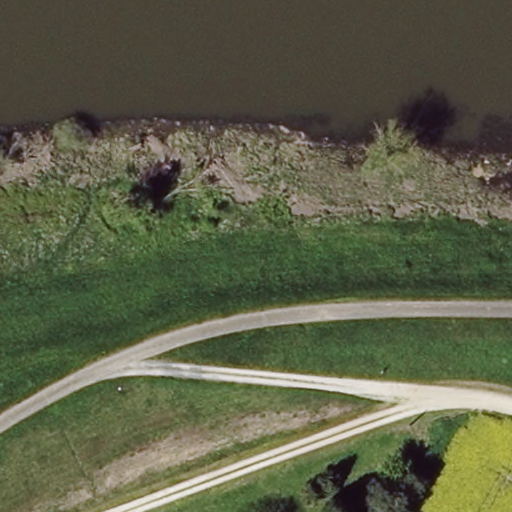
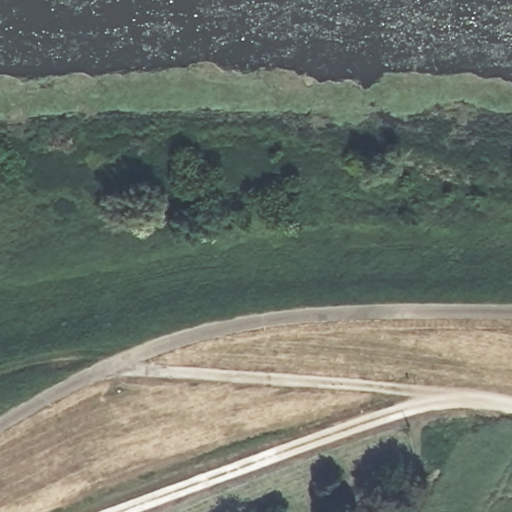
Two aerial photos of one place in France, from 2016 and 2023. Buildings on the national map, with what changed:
[]

